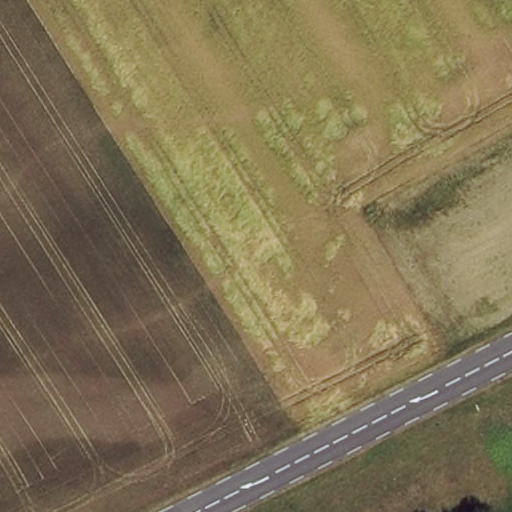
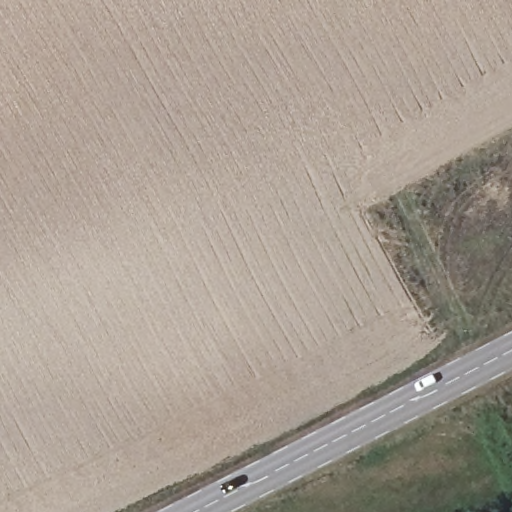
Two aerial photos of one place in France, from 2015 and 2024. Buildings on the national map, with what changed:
[]

